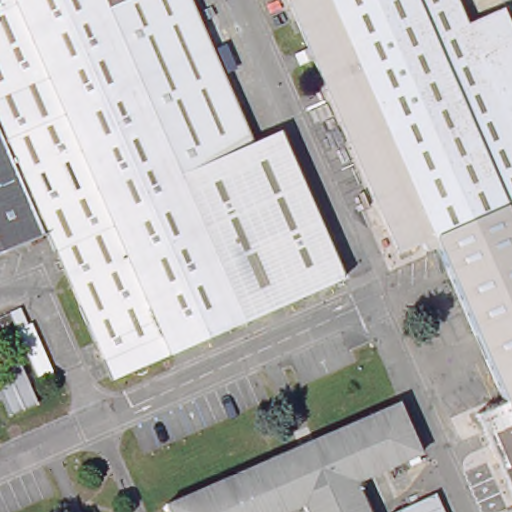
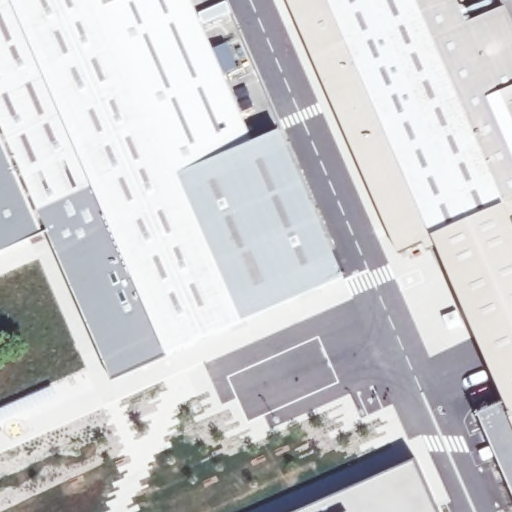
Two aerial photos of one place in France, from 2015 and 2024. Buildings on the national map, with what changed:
unchanged [(255,145),(281,134),(340,269),(345,279),(175,354),(112,382),(45,235),(0,255),(0,0),(192,0),(255,145)]
unchanged [(447,271),(439,251),(437,247),(425,251),(421,243),(398,254),(288,0),(452,0),(464,27),(502,10),(512,31),(512,251),(447,271)]
unchanged [(478,414),(504,403),(447,271),(512,251),(512,492),(491,444),(478,414)]
unchanged [(2,399),(0,400),(0,376),(20,366),(37,405),(11,416),(2,399)]
demolished [(275,512),(207,512),(200,485),(300,441),(314,435),(400,397),(422,447),(356,476),(369,505),(372,512),(310,512),(305,499),(275,512)]
new [(439,512),(303,512),(417,462),(439,512)]
demolished [(200,485),(207,512),(172,512),(167,499),(200,485)]

